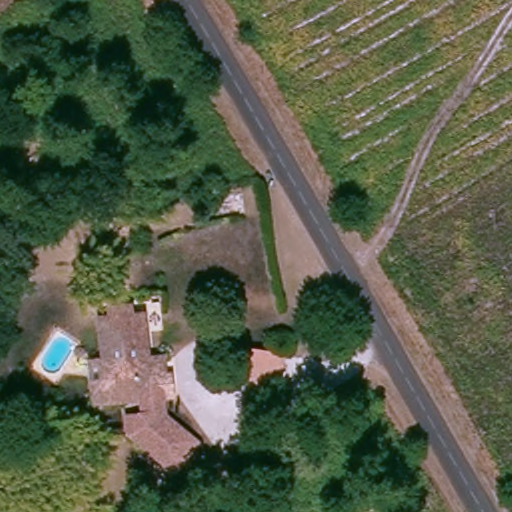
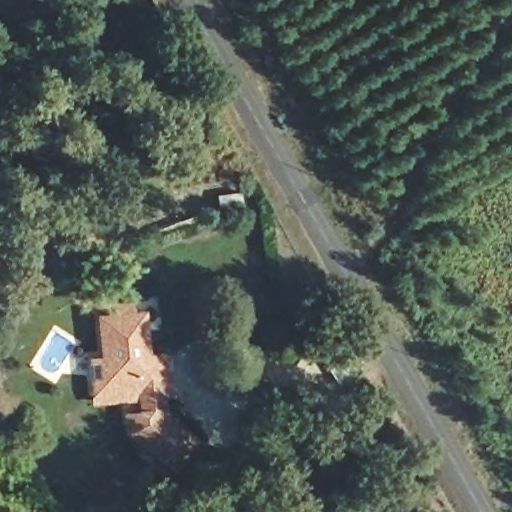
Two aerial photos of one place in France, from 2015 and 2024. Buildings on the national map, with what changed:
unchanged [(132,437),(127,429),(120,430),(119,425),(117,413),(126,412),(136,412),(134,401),(134,398),(88,403),(86,379),(85,363),(97,361),(92,302),(124,299),(126,311),(138,310),(144,352),(152,352),(155,373),(165,371),(167,393),(159,395),(159,399),(162,423),(184,449),(158,470),(132,437)]
unchanged [(249,383),(250,347),(279,348),(277,383),(277,399),(247,402),(249,383)]
unchanged [(361,371),(352,376),(344,366),(353,360),(361,371)]

